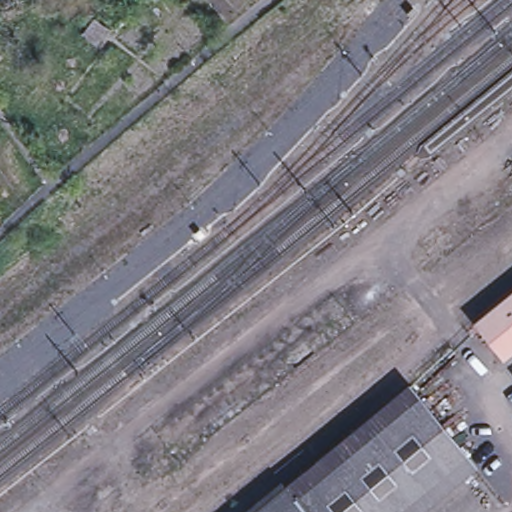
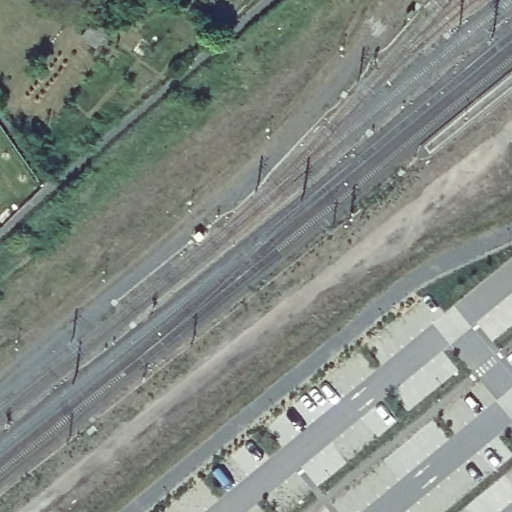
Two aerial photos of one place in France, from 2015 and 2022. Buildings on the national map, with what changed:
demolished [(473,324),(512,293),(512,351),(502,358),(473,324)]
demolished [(419,512),(238,512),(277,478),(284,484),(409,382),(477,464),(419,512)]

